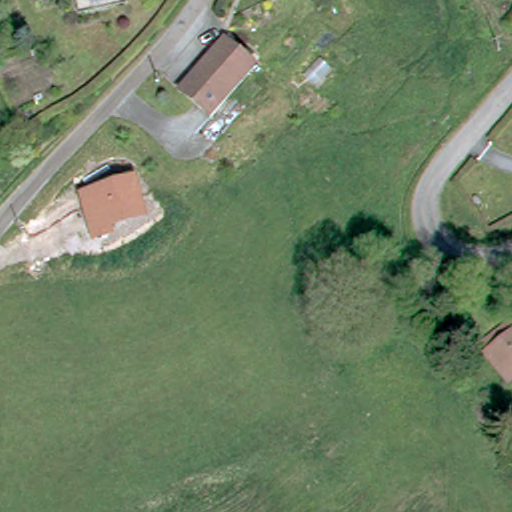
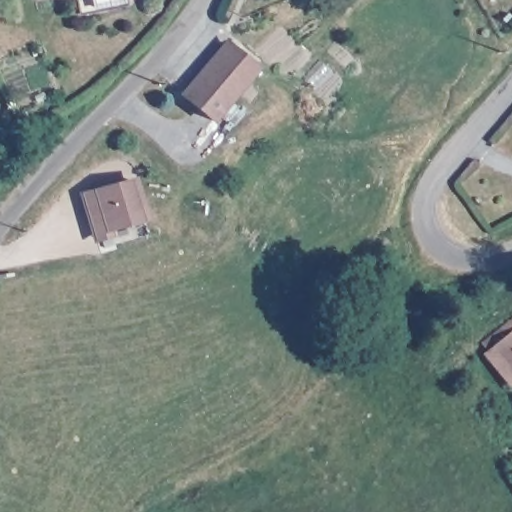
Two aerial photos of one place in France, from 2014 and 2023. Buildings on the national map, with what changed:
unchanged [(40,7),(39,0),(120,0),(122,12),(76,19),(73,2),(40,7)]
unchanged [(252,64),(215,116),(183,93),(220,41),(252,64)]
unchanged [(115,239),(92,243),(78,194),(137,176),(149,220),(113,231),(115,239)]
unchanged [(479,347),(507,322),(512,328),(512,378),(510,380),(488,357),(479,347)]

